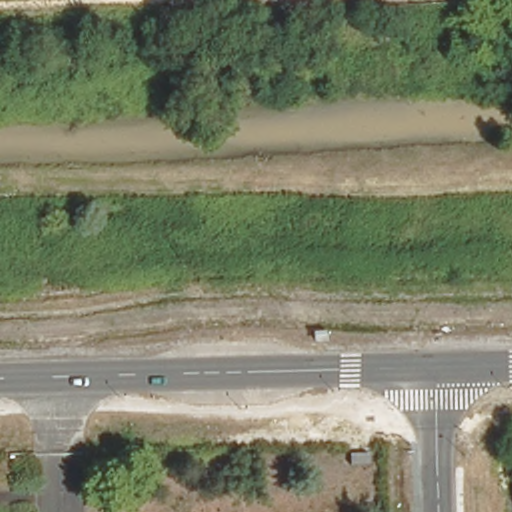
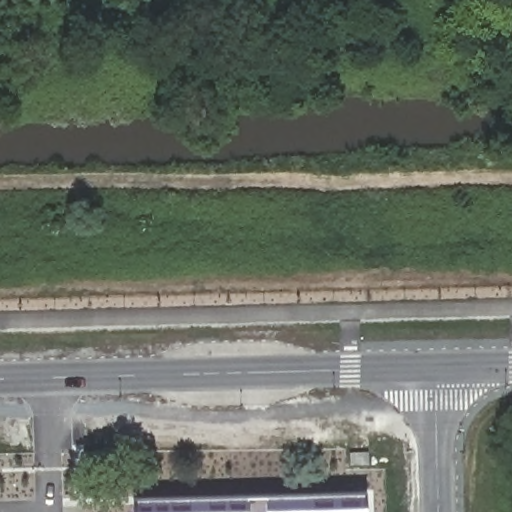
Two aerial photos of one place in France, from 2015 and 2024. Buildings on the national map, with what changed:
new [(365,498),(366,512),(134,512),(134,503),(365,498)]

